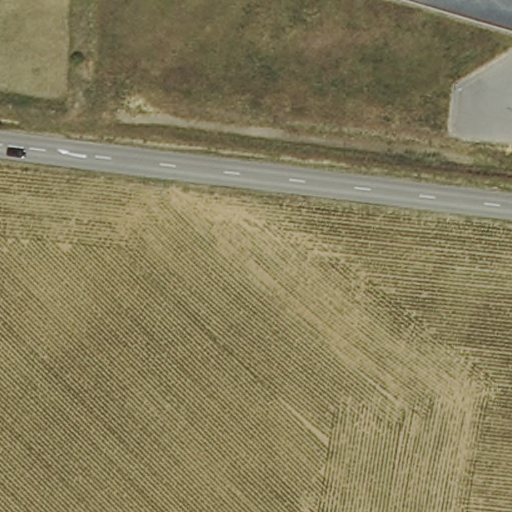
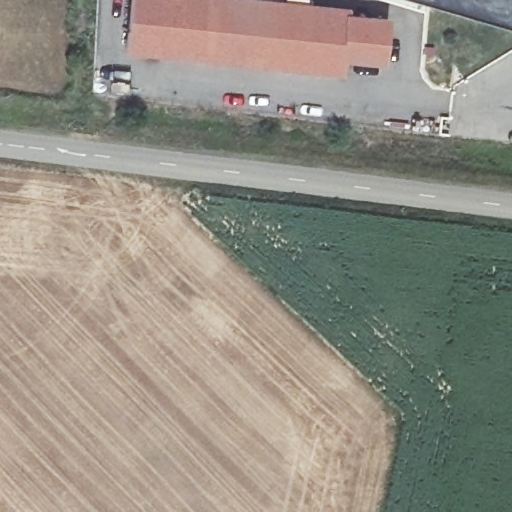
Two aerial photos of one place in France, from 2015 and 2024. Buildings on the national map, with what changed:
new [(348,15),(391,20),(386,65),(346,60),(345,74),(124,52),(130,0),(281,0),(348,7),(348,15)]

